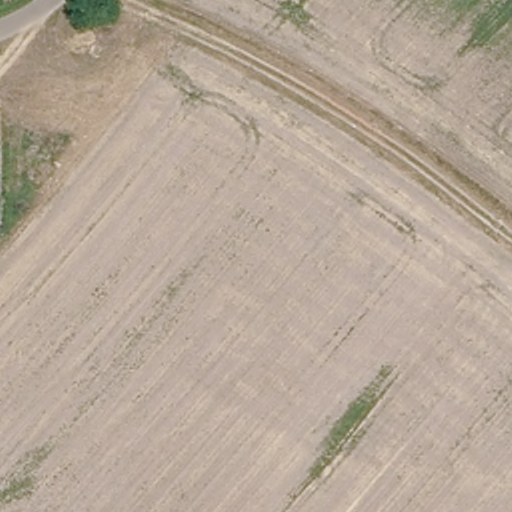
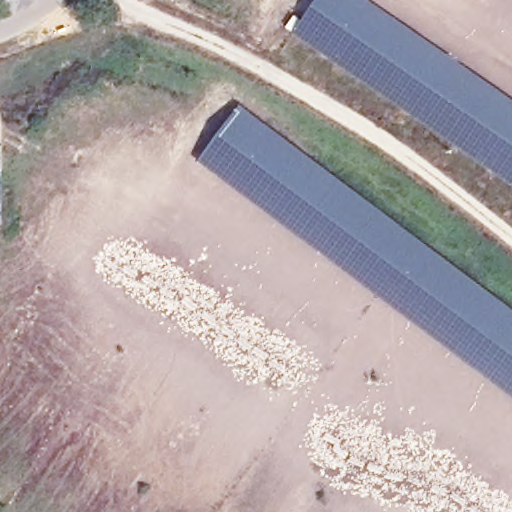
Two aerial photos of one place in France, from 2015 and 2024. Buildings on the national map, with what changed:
new [(318,0),(369,0),(512,100),(512,186),(293,36),(318,0)]
new [(239,106),(512,309),(512,397),(198,162),(239,106)]

